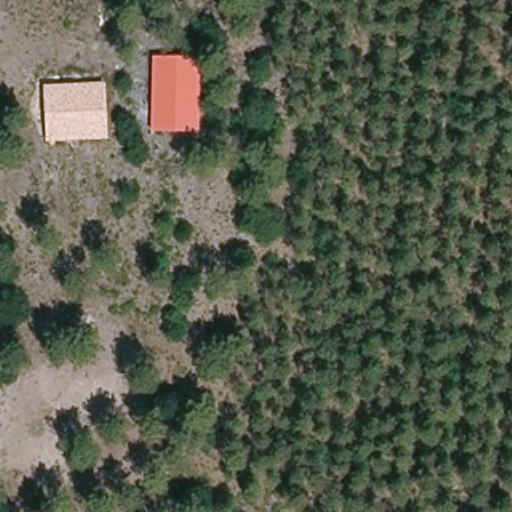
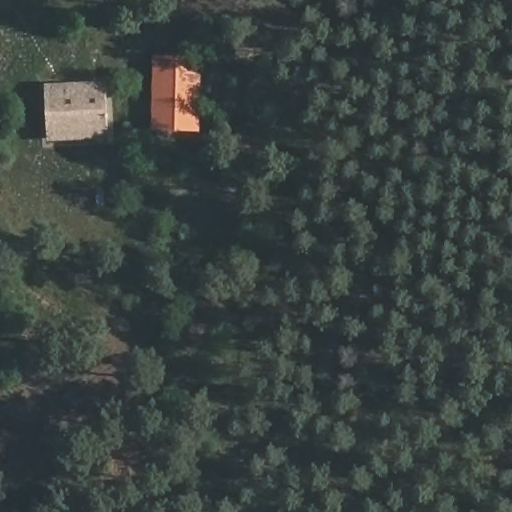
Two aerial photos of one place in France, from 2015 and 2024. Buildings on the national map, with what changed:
unchanged [(151,132),(152,56),(199,55),(199,134),(151,132)]
unchanged [(107,139),(46,142),(43,85),(105,82),(107,139)]

